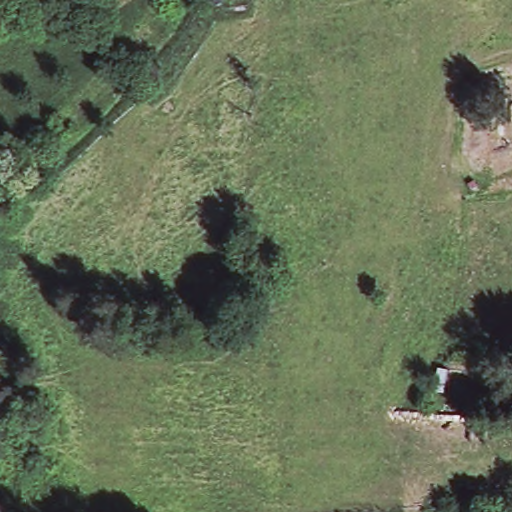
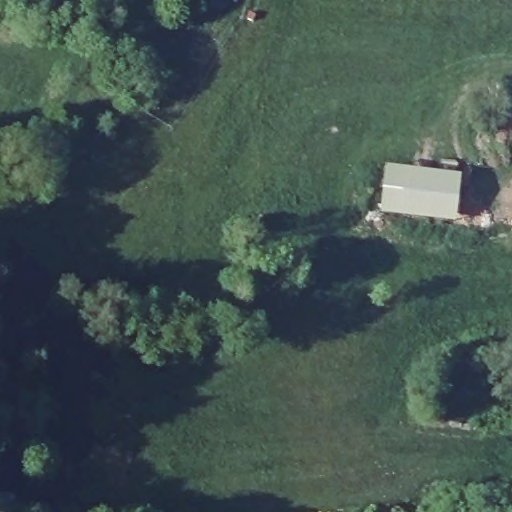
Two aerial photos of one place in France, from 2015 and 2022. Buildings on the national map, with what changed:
new [(378,211),(384,164),(460,174),(454,220),(378,211)]
unchanged [(435,370),(468,374),(465,402),(456,401),(455,415),(434,412),(435,370)]

